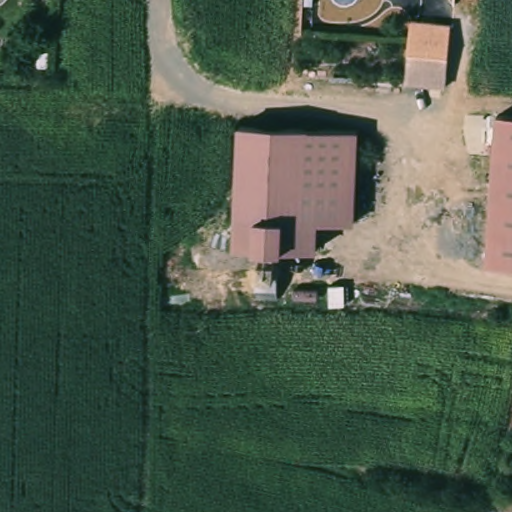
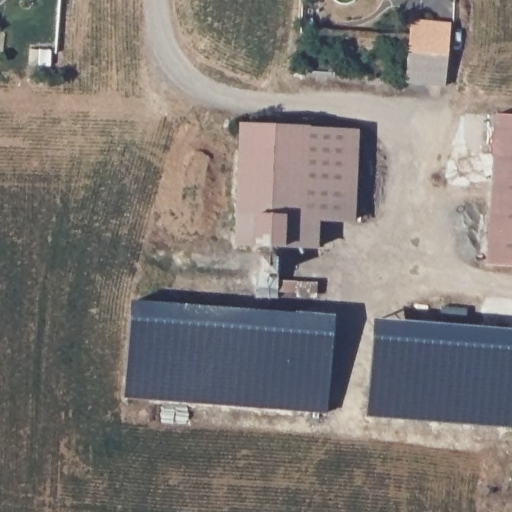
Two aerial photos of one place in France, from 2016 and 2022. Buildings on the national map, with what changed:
unchanged [(410,19),(450,20),(450,52),(410,51),(410,19)]
unchanged [(512,273),(503,272),(508,123),(512,123),(512,273)]
unchanged [(237,130),(305,132),(356,132),(354,223),(305,222),(306,252),(236,250),(237,220),(237,130)]
unchanged [(276,279),(255,278),(255,257),(280,258),(276,279)]
new [(325,413),(124,398),(130,300),(335,316),(325,413)]
new [(373,318),(512,329),(512,427),(365,416),(373,318)]

